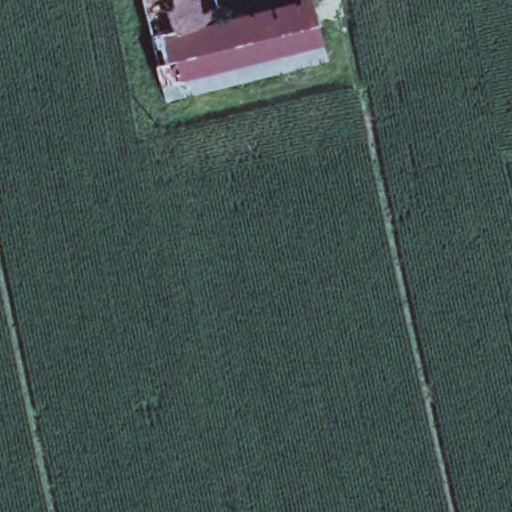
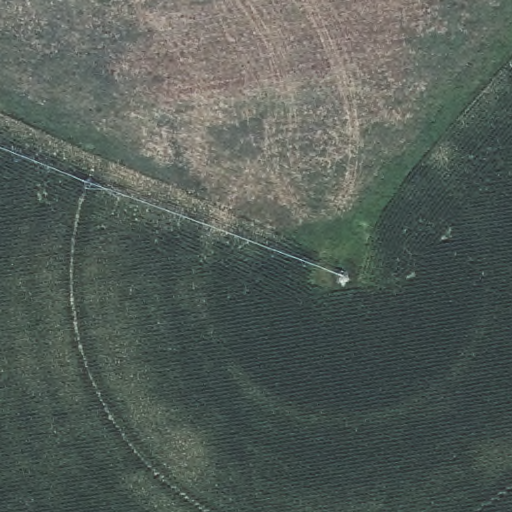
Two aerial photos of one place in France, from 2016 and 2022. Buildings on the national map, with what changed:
demolished [(319,34),(160,71),(143,0),(220,0),(220,1),(227,0),(312,0),(319,34)]

